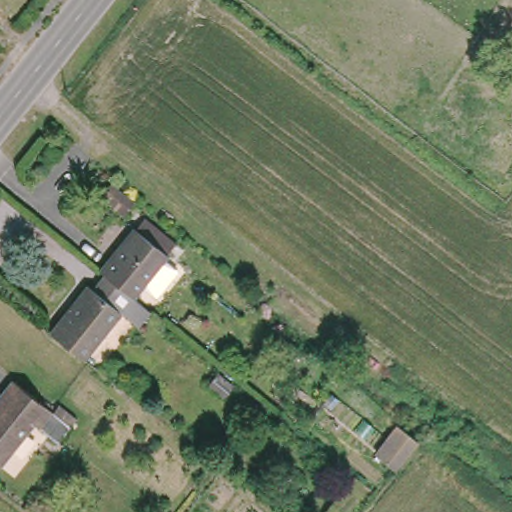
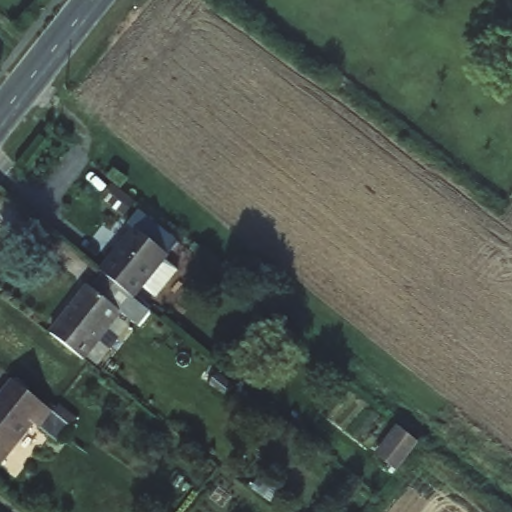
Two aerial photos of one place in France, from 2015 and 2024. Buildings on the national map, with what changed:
unchanged [(138,225),(172,251),(137,295),(108,272),(103,268),(102,267),(138,225)]
unchanged [(91,283),(97,287),(108,272),(137,295),(152,307),(140,321),(123,308),(85,356),(53,331),(91,283)]
unchanged [(230,387),(222,398),(205,386),(215,375),(230,387)]
unchanged [(62,438),(37,419),(4,461),(0,458),(0,396),(17,376),(74,422),(62,438)]
unchanged [(394,470),(376,456),(396,427),(415,442),(394,470)]

